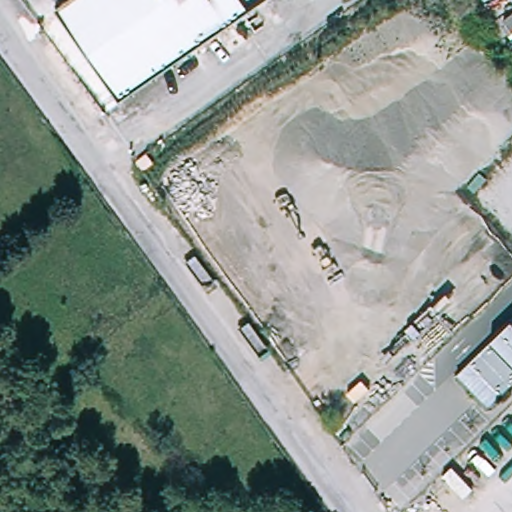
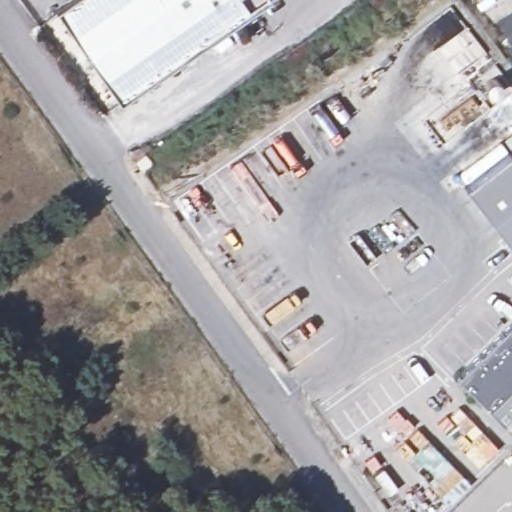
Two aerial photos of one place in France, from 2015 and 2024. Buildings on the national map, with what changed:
unchanged [(120,108),(53,16),(75,0),(264,0),(120,108)]
new [(464,187),(512,149),(512,250),(464,187)]
unchanged [(512,323),(512,386),(500,398),(469,366),(512,323)]

